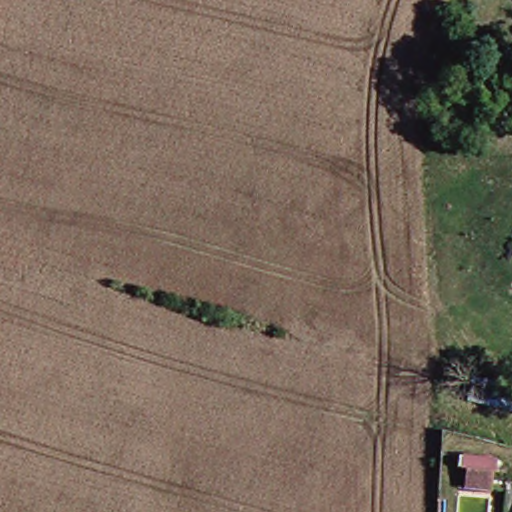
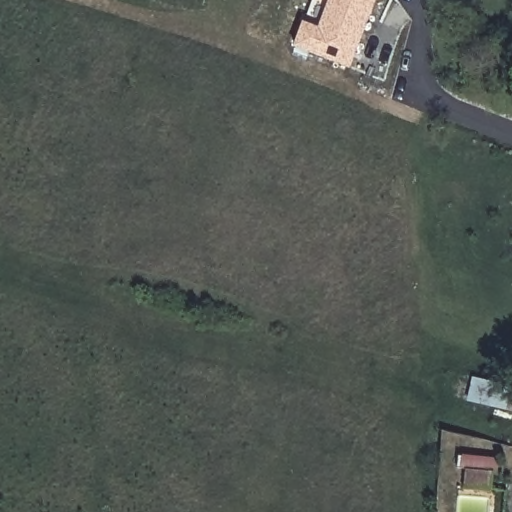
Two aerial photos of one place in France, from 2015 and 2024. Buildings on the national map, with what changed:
new [(292,47),(301,21),(317,27),(328,0),(375,0),(349,69),(292,47)]
unchanged [(512,411),(477,402),(483,375),(512,381),(512,411)]
unchanged [(509,491),(471,489),(471,471),(455,468),(457,456),(508,459),(509,491)]

